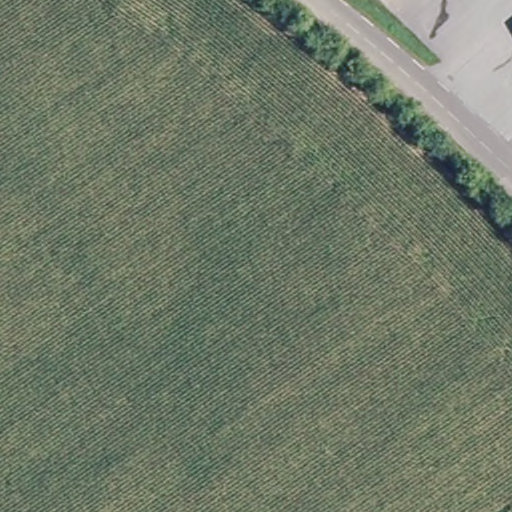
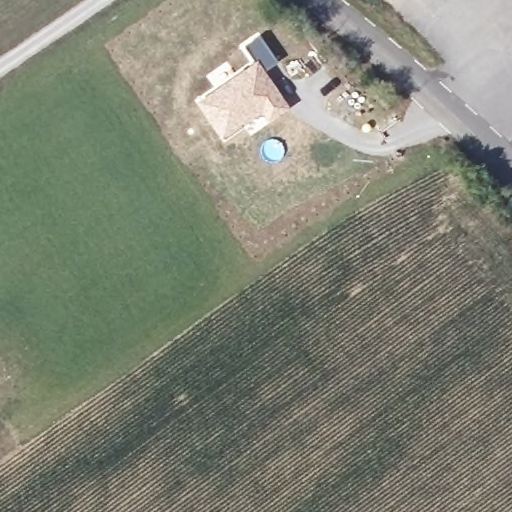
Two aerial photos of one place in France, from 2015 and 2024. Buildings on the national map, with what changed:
new [(256,60),(245,45),(260,35),(277,62),(265,71),(290,107),(266,122),(260,114),(222,138),(195,101),(256,60)]

